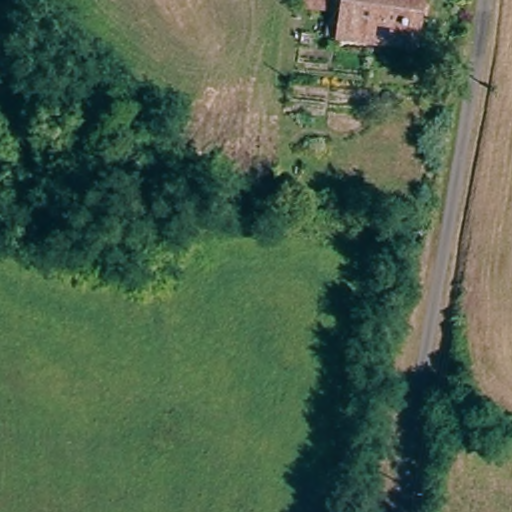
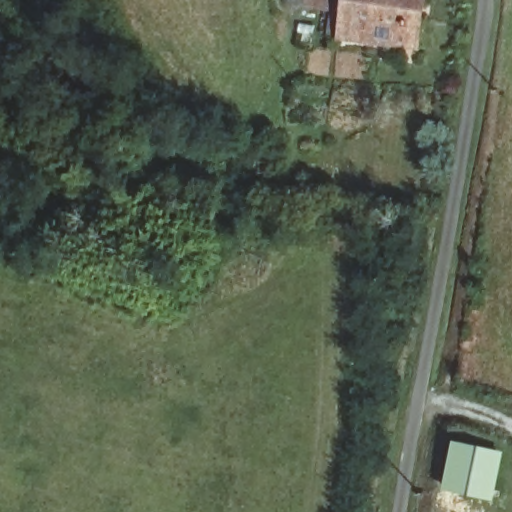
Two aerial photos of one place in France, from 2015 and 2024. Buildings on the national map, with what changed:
unchanged [(325,39),(329,13),(303,10),(305,0),(426,0),(417,53),(325,39)]
new [(451,439),(503,451),(491,501),(439,489),(451,439)]

